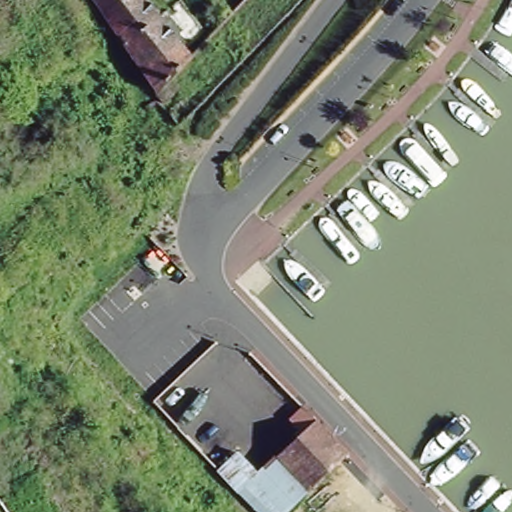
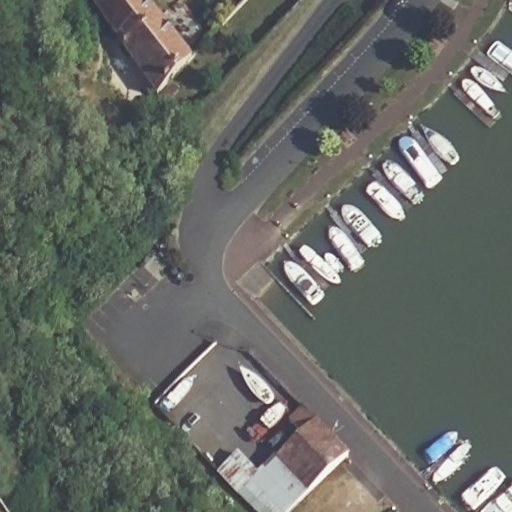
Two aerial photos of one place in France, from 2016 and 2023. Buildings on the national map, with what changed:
unchanged [(191,55),(156,90),(96,0),(150,0),(189,52),(191,55)]
unchanged [(276,455),(314,419),(347,454),(309,490),(276,455)]
unchanged [(285,512),(255,512),(236,492),(276,455),(309,490),(285,512)]

